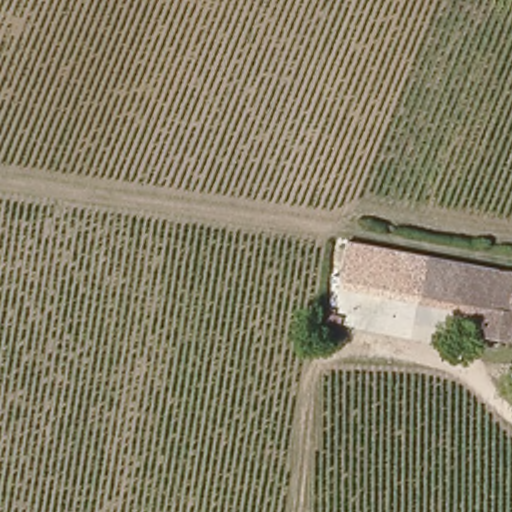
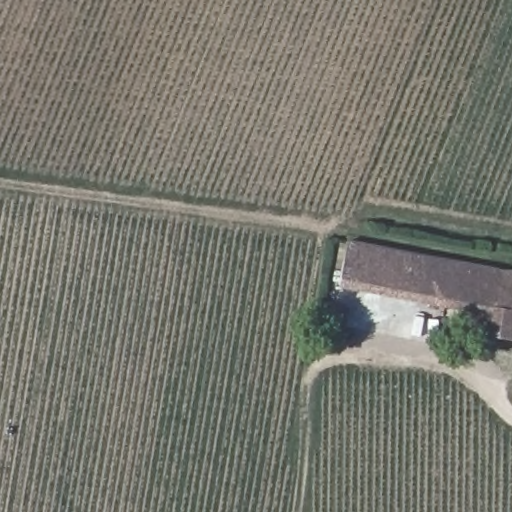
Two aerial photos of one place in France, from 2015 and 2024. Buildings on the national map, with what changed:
unchanged [(338,289),(348,242),(426,255),(418,300),(338,289)]
unchanged [(512,340),(480,335),(484,311),(418,300),(426,255),(512,270),(512,340)]

